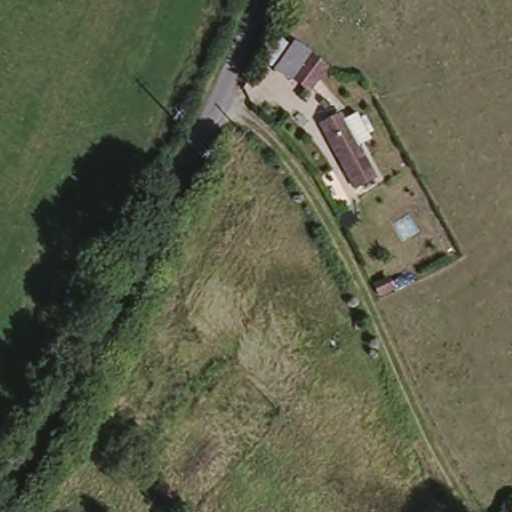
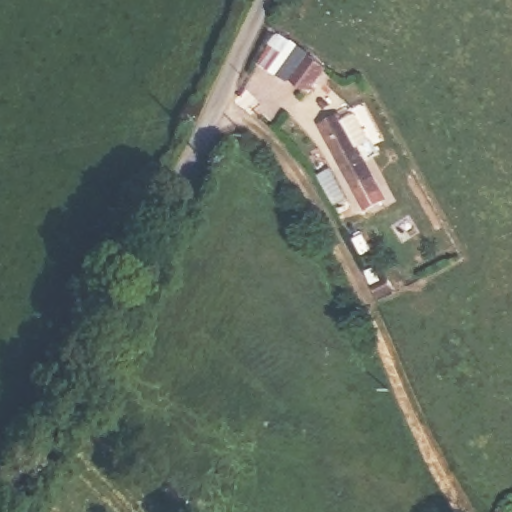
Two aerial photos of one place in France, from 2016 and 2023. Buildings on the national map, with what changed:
unchanged [(322,71),(306,92),(291,81),(307,57),(322,71)]
unchanged [(338,111),(368,175),(345,185),(317,124),(338,111)]
unchanged [(382,262),(388,273),(376,280),(370,269),(382,262)]
unchanged [(512,507),(512,512),(501,512),(509,504),(512,507)]

